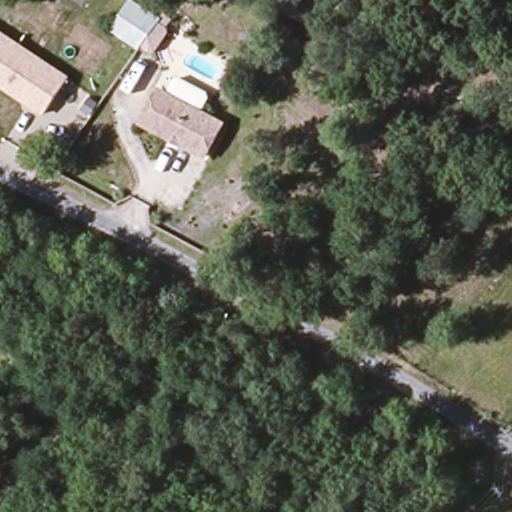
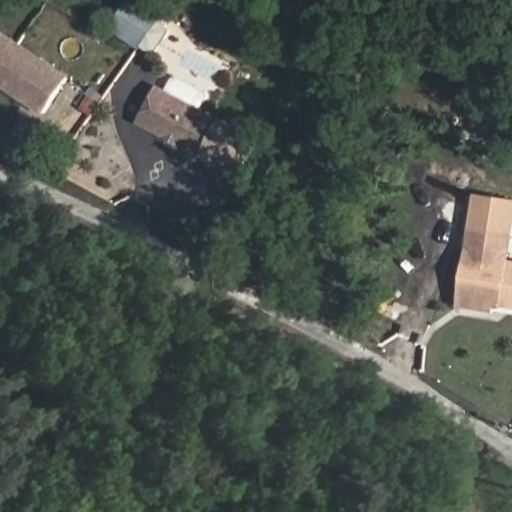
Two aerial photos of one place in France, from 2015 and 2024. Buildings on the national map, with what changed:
unchanged [(159,46),(149,41),(142,51),(112,31),(132,0),(172,24),(159,46)]
unchanged [(47,115),(0,83),(0,30),(73,79),(47,115)]
unchanged [(232,129),(212,164),(148,126),(168,90),(232,129)]
new [(512,201),(512,235),(470,230),(476,195),(512,201)]
new [(470,230),(512,235),(512,256),(512,260),(512,308),(504,307),(496,306),(495,312),(458,308),(470,230)]

